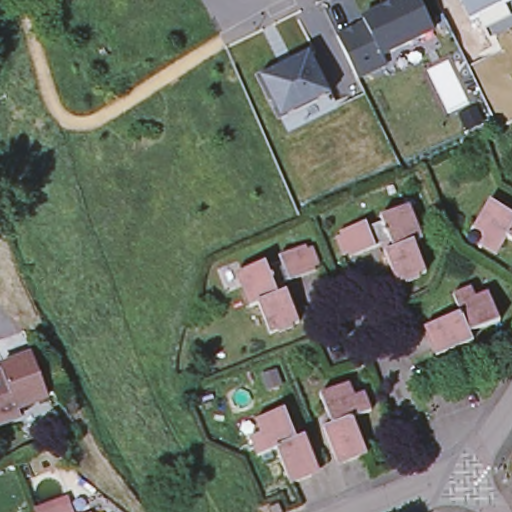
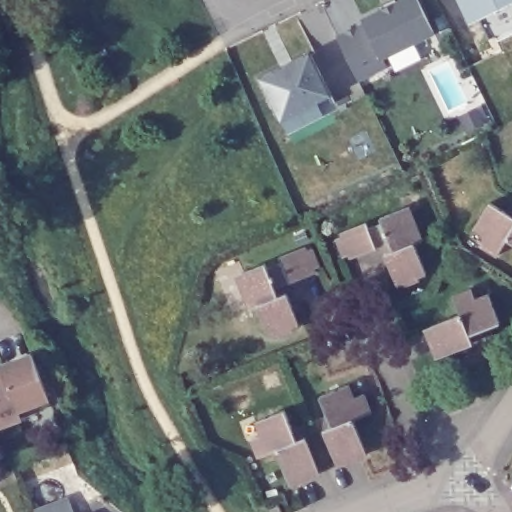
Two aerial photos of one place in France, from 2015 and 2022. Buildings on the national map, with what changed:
unchanged [(382,58),(387,67),(358,81),(337,39),(365,25),(363,21),(381,12),(380,8),(395,0),(397,4),(405,0),(418,0),(434,33),(382,58)]
unchanged [(512,29),(487,41),(477,20),(470,22),(460,0),(512,0),(512,29)]
unchanged [(282,122),(260,79),(310,54),(331,97),(282,122)]
unchanged [(512,241),(501,234),(490,251),(474,240),(476,236),(477,232),(476,229),(467,224),(485,197),(512,214),(512,241)]
unchanged [(401,280),(385,242),(358,252),(356,249),(350,251),(345,233),(350,232),(349,227),(375,217),(376,222),(390,217),(388,212),(418,202),(431,236),(423,238),(434,267),(401,280)]
unchanged [(275,258),(272,252),(300,243),(300,246),(305,244),(312,261),(306,262),(309,268),(283,277),(297,317),(263,330),(253,302),(243,305),(231,271),(260,260),(261,263),(275,258)]
unchanged [(435,351),(432,343),(425,346),(420,330),(426,327),(424,322),(453,310),(446,291),(462,285),(467,295),(481,290),(492,318),(461,331),(465,340),(435,351)]
unchanged [(19,417),(0,424),(0,368),(1,368),(0,366),(32,353),(47,396),(15,407),(19,417)]
unchanged [(329,421),(317,391),(346,380),(351,391),(361,388),(366,406),(350,413),(361,444),(356,447),(357,452),(341,457),(340,452),(332,455),(320,425),(329,421)]
unchanged [(273,442),(255,451),(247,433),(257,428),(252,416),(281,404),(295,435),(302,432),(315,462),(308,464),(311,470),(295,477),(292,471),(286,473),(273,442)]
unchanged [(512,452),(512,454),(511,453),(512,452)]
unchanged [(266,512),(264,508),(275,503),(278,512),(266,512)]

